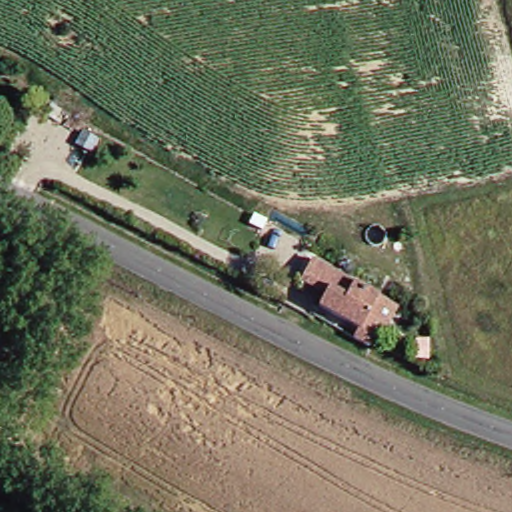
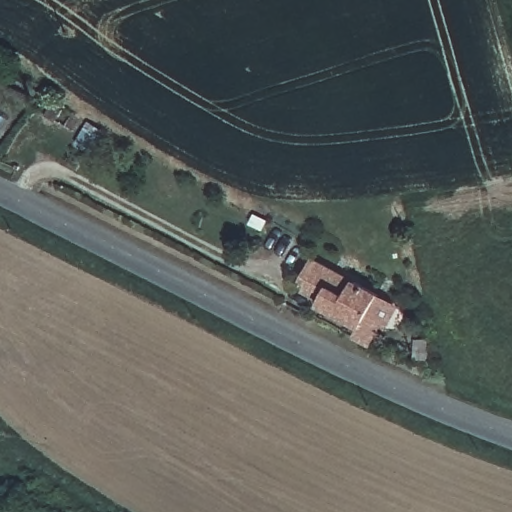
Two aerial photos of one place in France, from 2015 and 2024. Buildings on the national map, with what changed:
unchanged [(389,327),(384,325),(372,346),(360,340),(367,328),(328,307),(335,294),(311,279),(322,259),(384,296),(401,306),(389,327)]

